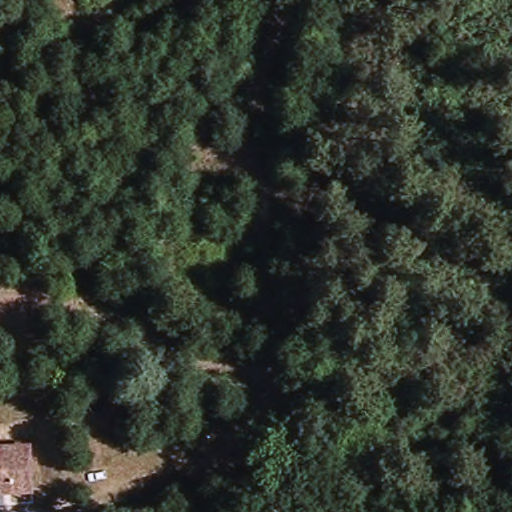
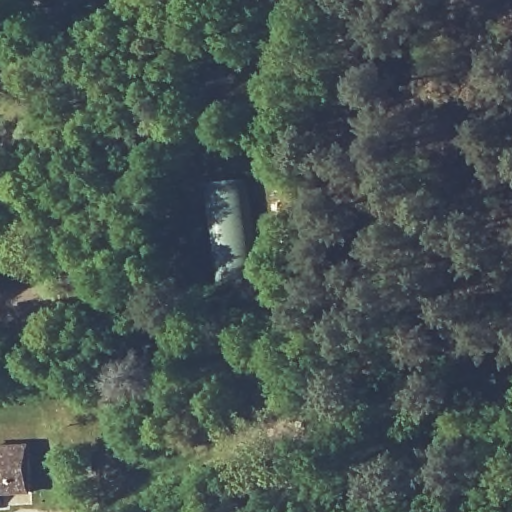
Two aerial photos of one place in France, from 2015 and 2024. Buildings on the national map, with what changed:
new [(216,281),(205,184),(248,178),(260,277),(216,281)]
unchanged [(0,492),(0,447),(24,445),(26,490),(0,492)]

